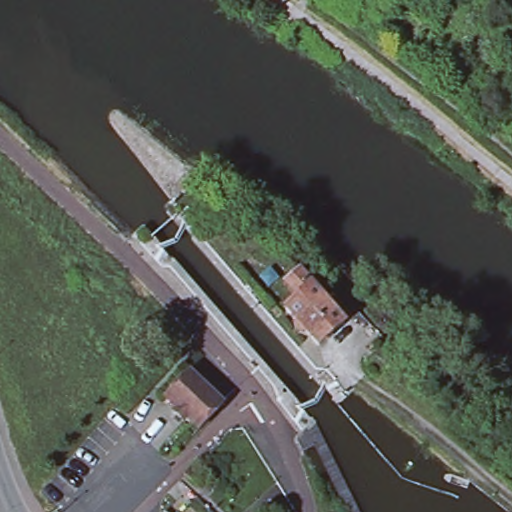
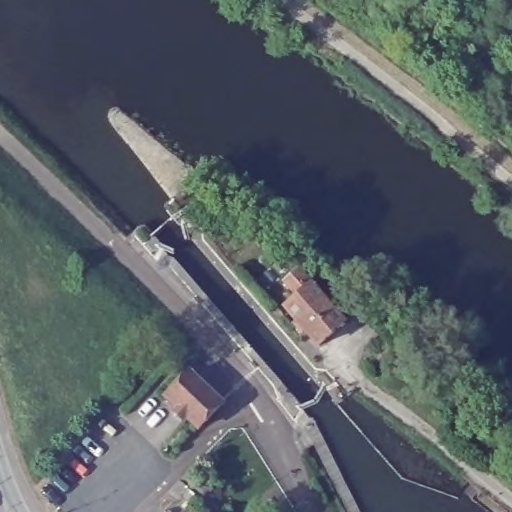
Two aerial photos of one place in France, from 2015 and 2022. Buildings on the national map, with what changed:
unchanged [(297,290),(286,277),(300,266),(345,320),(318,342),(283,300),(297,290)]
unchanged [(224,405),(198,432),(182,417),(179,420),(168,410),(172,407),(165,400),(158,394),(187,365),(193,372),(224,405)]

